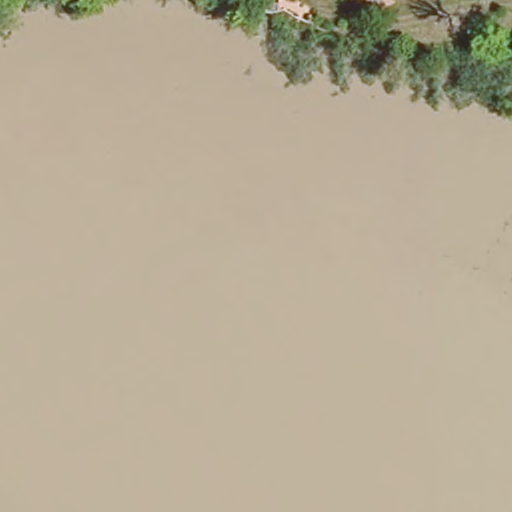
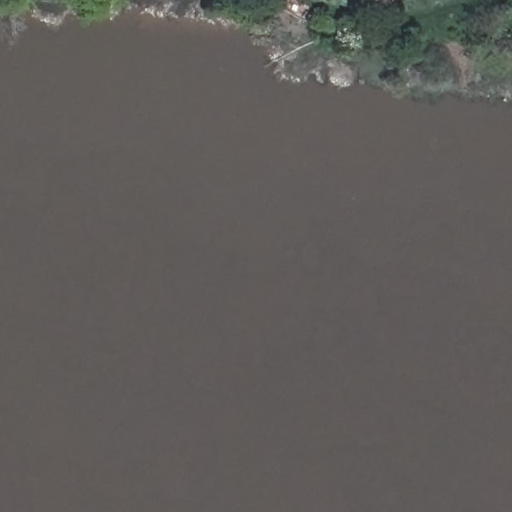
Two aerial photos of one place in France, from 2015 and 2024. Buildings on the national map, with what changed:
unchanged [(375,0),(378,0),(378,1),(375,0)]

